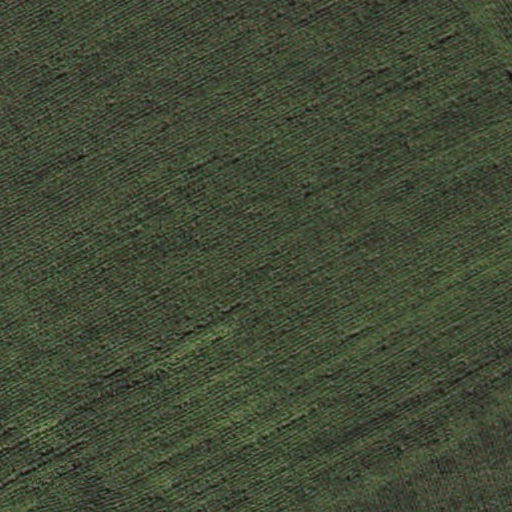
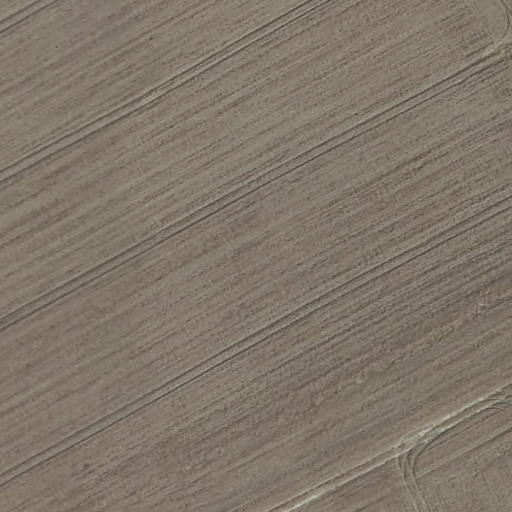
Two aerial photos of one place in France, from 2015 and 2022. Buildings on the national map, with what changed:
[]

